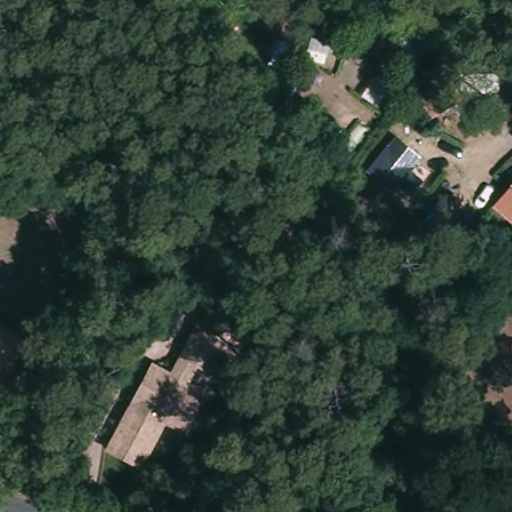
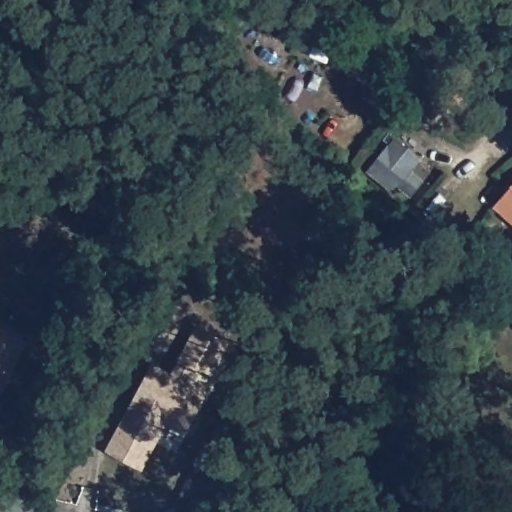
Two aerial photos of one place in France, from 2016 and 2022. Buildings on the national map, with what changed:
unchanged [(415,114),(451,92),(466,114),(429,136),(415,114)]
unchanged [(512,191),(512,226),(495,210),(512,191)]
unchanged [(2,396),(0,395),(0,320),(30,335),(2,396)]
unchanged [(193,358),(179,350),(196,322),(223,340),(207,367),(193,358)]
unchanged [(182,377),(199,388),(176,425),(158,414),(132,457),(100,438),(149,357),(167,369),(179,350),(193,358),(182,377)]

